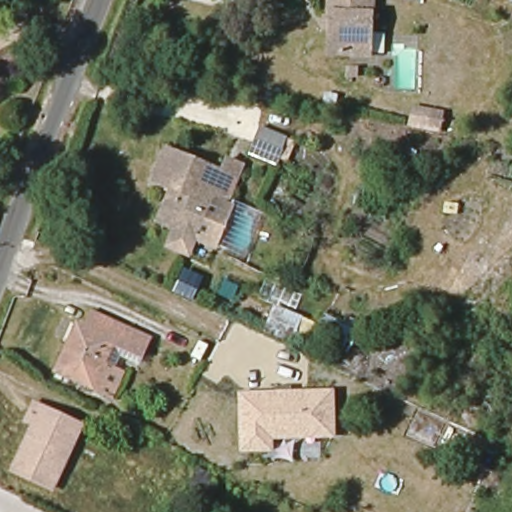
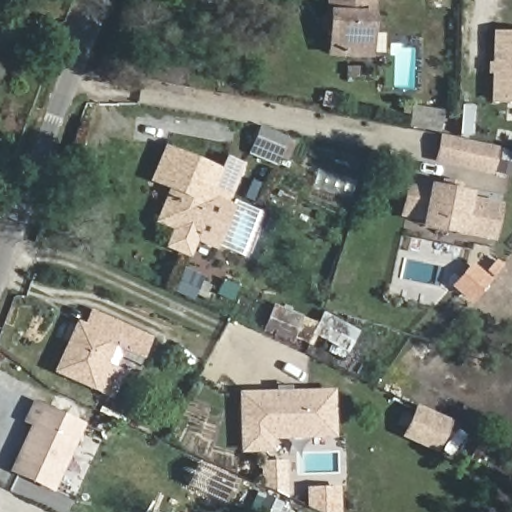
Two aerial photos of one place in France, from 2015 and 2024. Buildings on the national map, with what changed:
unchanged [(335,50),(338,0),(366,0),(364,52),(335,50)]
new [(485,74),(486,61),(490,61),(491,31),(512,31),(512,104),(488,103),(490,74),(485,74)]
new [(410,109),(441,114),(437,133),(407,127),(410,109)]
unchanged [(275,165),(245,154),(257,124),(287,135),(275,165)]
new [(433,161),(438,134),(497,146),(492,174),(433,161)]
unchanged [(190,258),(166,248),(174,226),(157,221),(172,185),(159,180),(171,149),(216,168),(219,161),(244,168),(237,187),(231,206),(215,249),(197,243),(190,258)]
new [(495,240),(460,235),(417,228),(418,220),(399,217),(404,184),(425,187),(425,183),(469,191),(468,196),(502,202),(495,240)]
unchanged [(322,312),(359,329),(348,354),(315,339),(307,352),(262,333),(274,304),(317,323),(322,312)]
unchanged [(127,371),(114,402),(90,393),(56,379),(76,329),(86,335),(93,314),(154,338),(137,369),(119,361),(116,366),(127,371)]
unchanged [(337,438),(273,439),(273,453),(240,454),(237,390),(335,389),(337,438)]
new [(435,453),(400,437),(415,404),(450,420),(435,453)]
unchanged [(49,496),(14,478),(37,436),(25,431),(35,411),(77,432),(49,496)]

